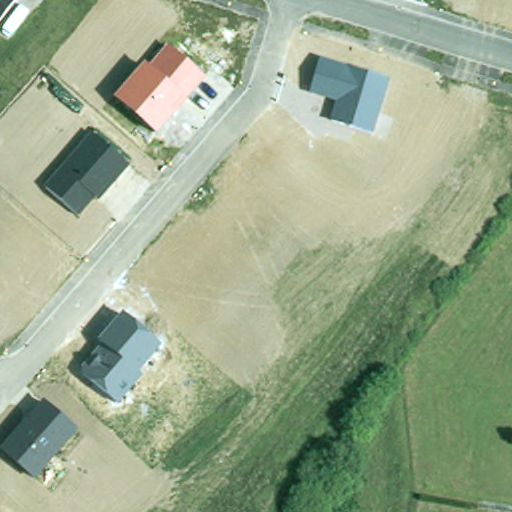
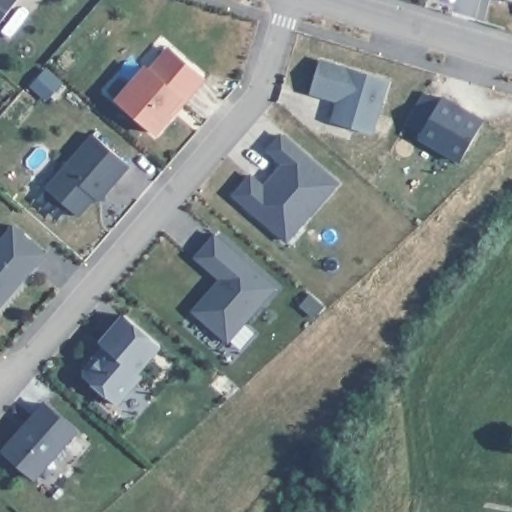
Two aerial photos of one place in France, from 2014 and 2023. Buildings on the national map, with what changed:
unchanged [(0,0),(20,0),(0,24),(0,0)]
new [(506,0),(512,0),(512,1),(506,0)]
unchanged [(148,67),(168,47),(206,81),(154,138),(110,99),(143,63),(148,67)]
unchanged [(389,81),(371,135),(330,121),(336,100),(309,92),(318,61),(389,81)]
new [(45,99),(30,85),(44,70),(60,83),(45,99)]
new [(460,163),(418,141),(422,132),(407,125),(423,90),(484,119),(460,163)]
new [(288,243),(231,195),(251,172),(263,183),(279,164),(266,152),(281,132),(339,182),(288,243)]
unchanged [(130,166),(96,204),(93,200),(75,218),(41,187),(88,135),(130,166)]
new [(0,308),(0,236),(12,223),(47,253),(0,308)]
new [(228,345),(189,310),(218,278),(192,258),(213,231),(278,287),(228,345)]
unchanged [(161,347),(139,375),(142,378),(116,408),(77,375),(99,347),(96,345),(123,312),(161,347)]
unchanged [(34,482),(0,453),(0,451),(43,400),(78,432),(34,482)]

